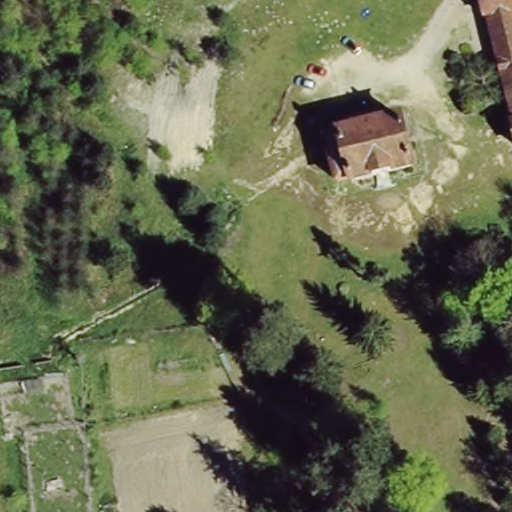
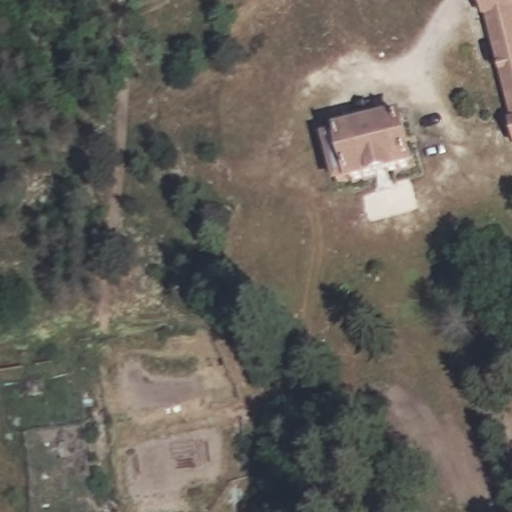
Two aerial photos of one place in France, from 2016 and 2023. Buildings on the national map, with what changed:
unchanged [(479,0),(512,0),(512,137),(479,0)]
unchanged [(335,188),(324,130),(358,121),(352,102),(378,98),(381,114),(404,104),(417,164),(335,188)]

